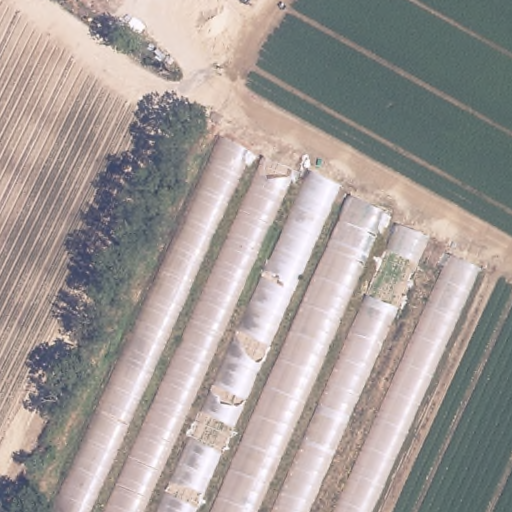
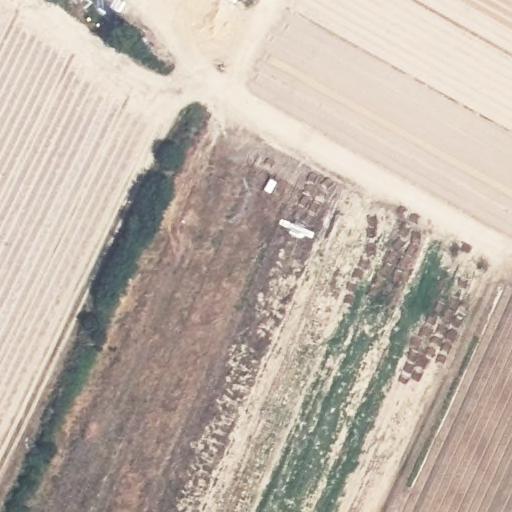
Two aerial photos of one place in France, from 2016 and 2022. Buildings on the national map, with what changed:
demolished [(478,260),(368,512),(49,512),(221,133),(478,260)]

